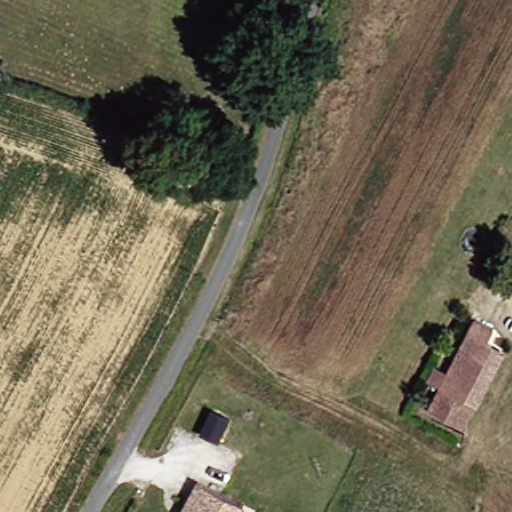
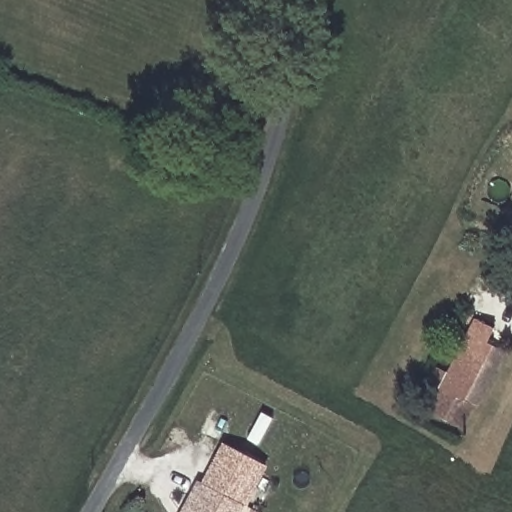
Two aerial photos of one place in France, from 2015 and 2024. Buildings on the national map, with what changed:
unchanged [(494,329),(487,342),(493,345),(465,400),(474,405),(462,429),(429,412),(475,320),(494,329)]
unchanged [(200,435),(211,411),(229,421),(217,443),(200,435)]
new [(223,443),(268,466),(247,506),(201,482),(223,443)]
unchanged [(247,506),(245,512),(187,512),(194,499),(193,498),(201,482),(247,506)]

